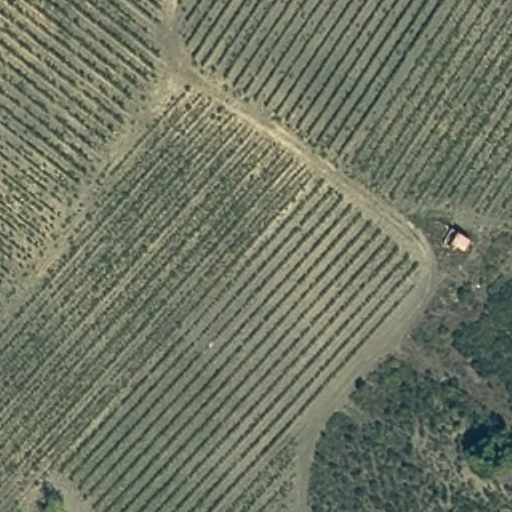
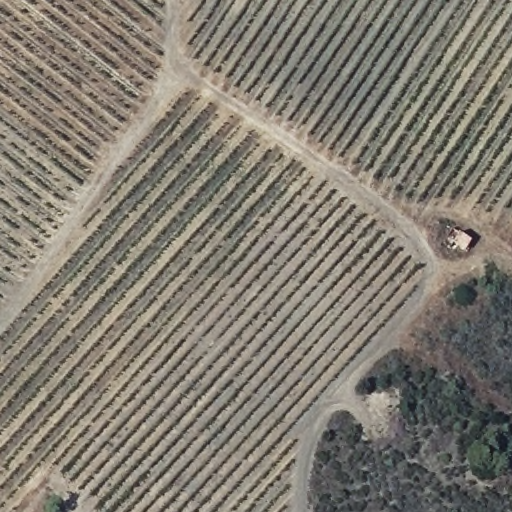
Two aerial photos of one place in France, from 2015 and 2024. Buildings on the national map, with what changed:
unchanged [(472,238),(466,250),(449,244),(455,231),(472,238)]

